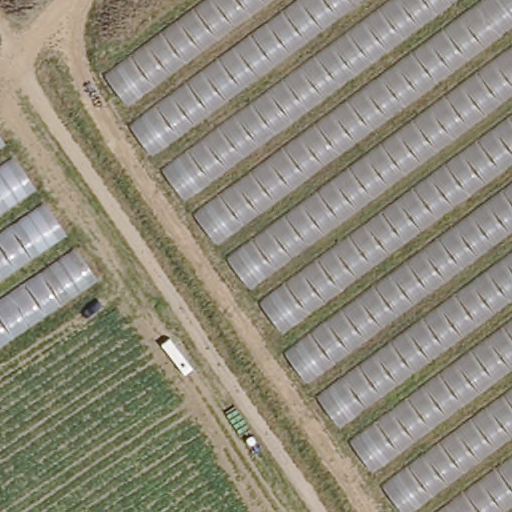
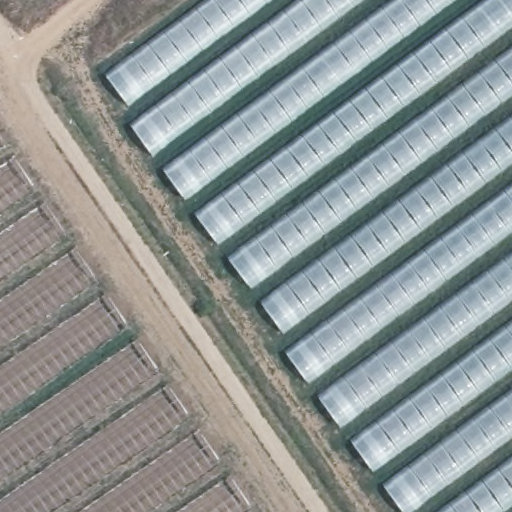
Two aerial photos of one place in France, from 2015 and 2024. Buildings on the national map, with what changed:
unchanged [(392,512),(96,79),(200,0),(512,0),(512,512),(392,512)]
unchanged [(0,344),(0,143),(95,279),(0,344)]
new [(253,512),(0,512),(0,344),(95,279),(253,512)]

